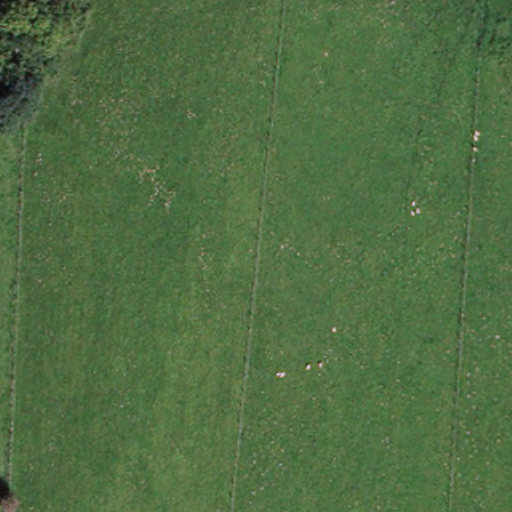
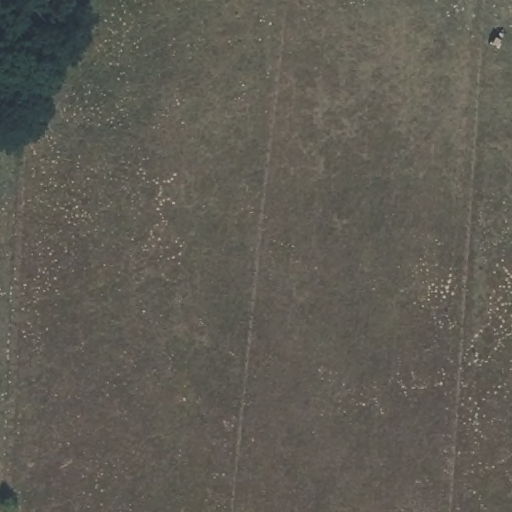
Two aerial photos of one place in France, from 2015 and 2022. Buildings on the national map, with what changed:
[]

